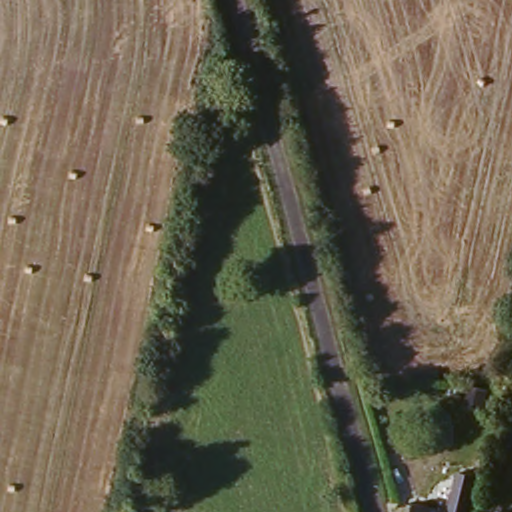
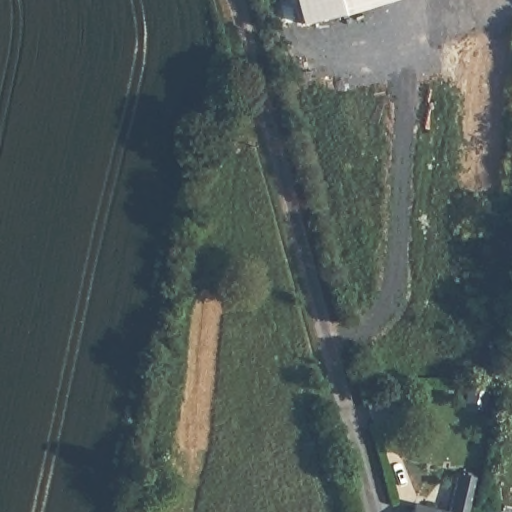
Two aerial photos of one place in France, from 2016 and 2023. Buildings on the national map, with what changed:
new [(299,23),(293,0),(377,0),(299,23)]
unchanged [(474,478),(466,512),(447,512),(457,475),(474,478)]
unchanged [(443,512),(410,512),(412,505),(443,512)]

